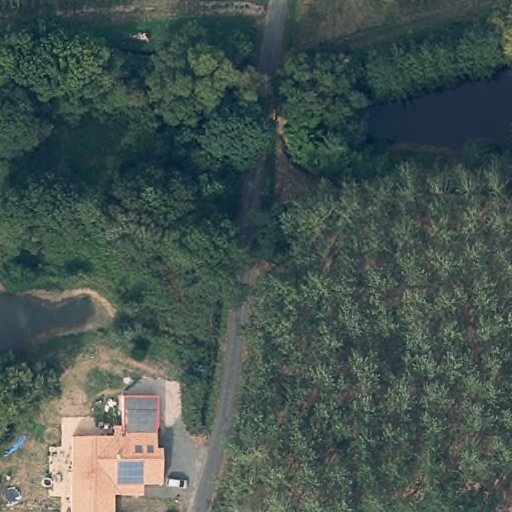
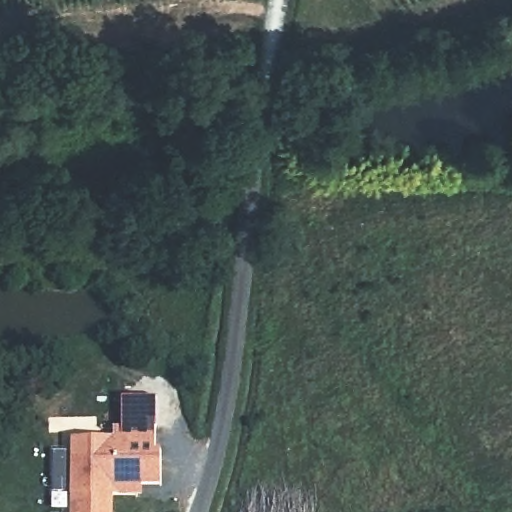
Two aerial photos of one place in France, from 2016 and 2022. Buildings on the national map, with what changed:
unchanged [(154,449),(159,449),(160,485),(136,485),(136,497),(113,496),(113,512),(70,512),(70,444),(70,438),(112,437),(113,427),(125,427),(155,427),(154,449)]

